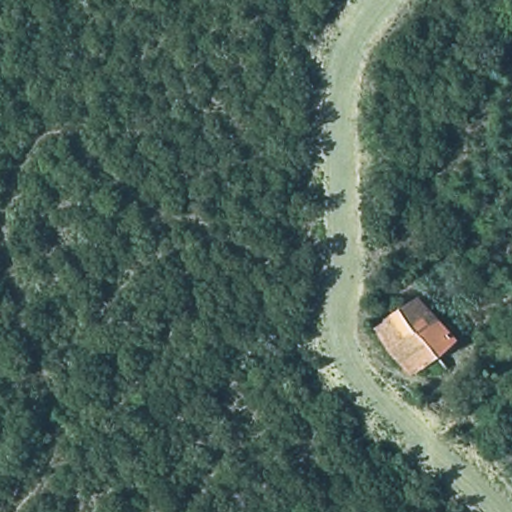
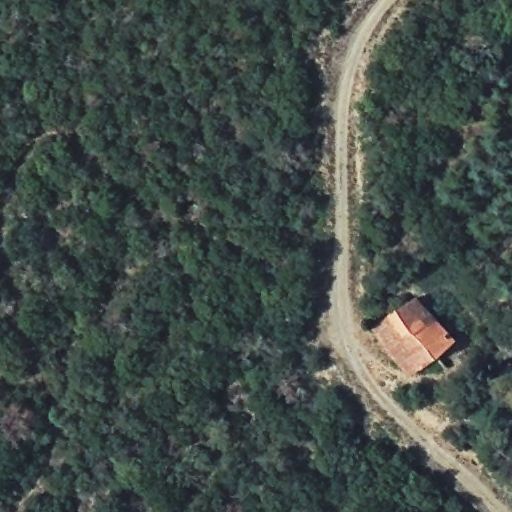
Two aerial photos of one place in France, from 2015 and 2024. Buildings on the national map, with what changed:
unchanged [(450,344),(440,353),(420,363),(426,377),(411,389),(392,352),(373,320),(408,299),(419,293),(450,344)]

